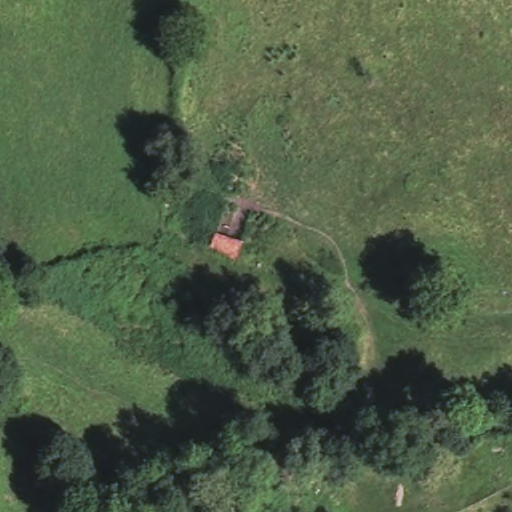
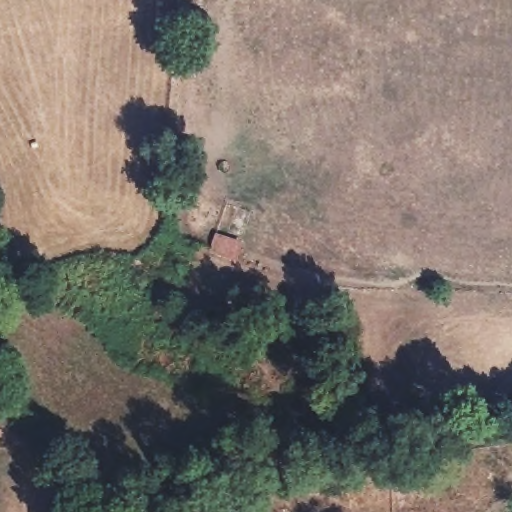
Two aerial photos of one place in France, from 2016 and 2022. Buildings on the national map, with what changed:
unchanged [(233,263),(207,253),(211,238),(239,244),(233,263)]

